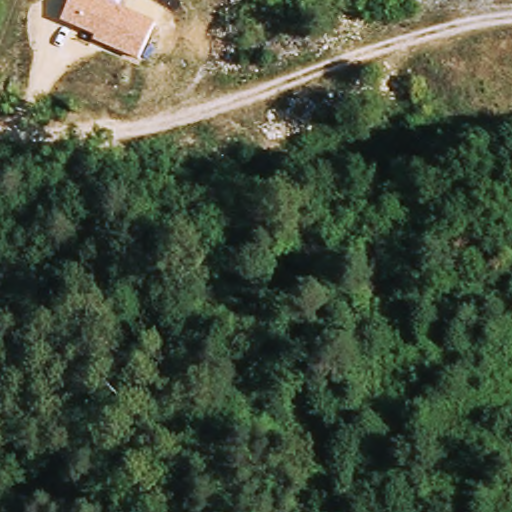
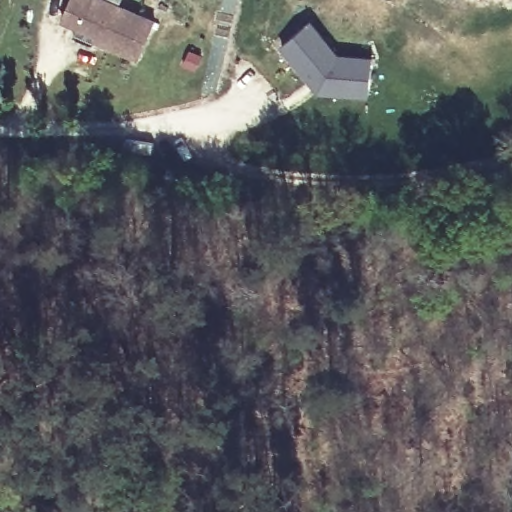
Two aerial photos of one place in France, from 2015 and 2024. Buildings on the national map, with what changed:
unchanged [(155,20),(136,61),(93,42),(96,35),(60,20),(68,0),(110,0),(155,20)]
new [(310,19),(340,52),(371,57),(367,97),(320,93),(305,74),(300,77),(275,47),(310,19)]

